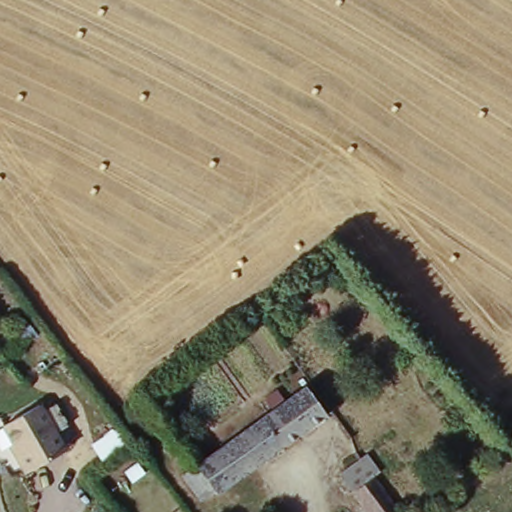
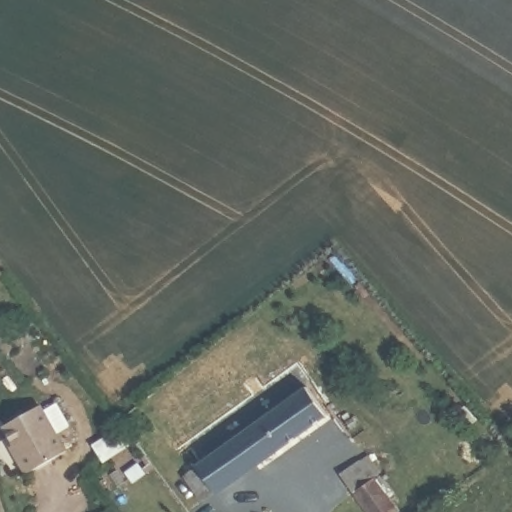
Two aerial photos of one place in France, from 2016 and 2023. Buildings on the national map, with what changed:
unchanged [(215,501),(195,470),(275,415),(265,403),(276,395),(285,406),(309,387),(331,417),(215,501)]
unchanged [(64,454),(21,479),(14,466),(6,471),(0,460),(0,429),(35,409),(64,454)]
unchanged [(201,512),(170,469),(175,465),(185,458),(195,470),(215,501),(202,512),(201,512)]
unchanged [(360,466),(395,512),(372,512),(345,478),(360,466)]

